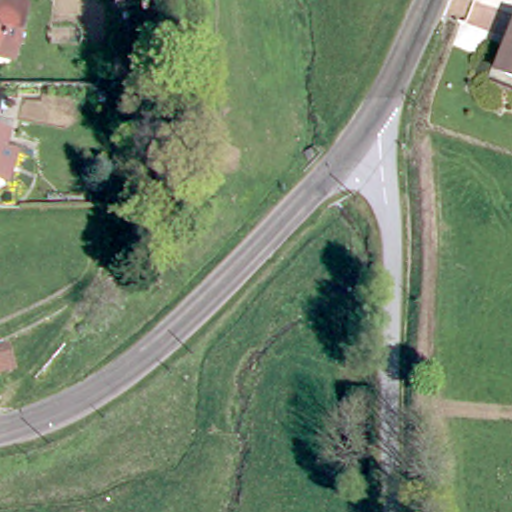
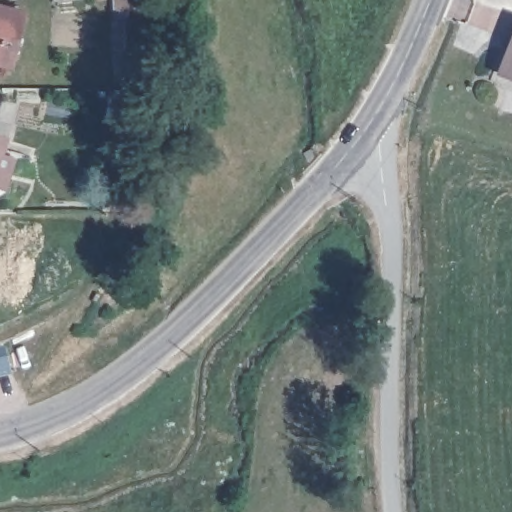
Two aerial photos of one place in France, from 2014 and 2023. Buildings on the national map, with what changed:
unchanged [(21,57),(11,55),(0,52),(0,0),(12,0),(35,6),(21,57)]
unchanged [(501,72),(512,39),(512,77),(501,72)]
unchanged [(7,67),(0,66),(0,52),(11,55),(7,67)]
unchanged [(0,162),(5,164),(0,175),(0,162)]

